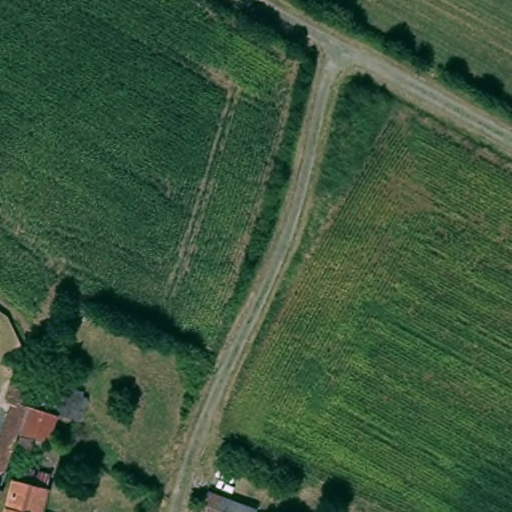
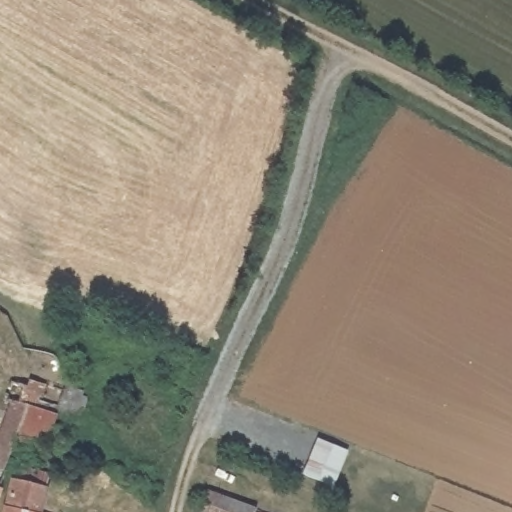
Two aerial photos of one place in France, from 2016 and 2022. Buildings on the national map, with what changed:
unchanged [(14,445),(12,451),(12,452),(11,453),(11,454),(8,460),(7,463),(6,465),(6,466),(5,467),(4,468),(1,473),(0,474),(0,434),(2,430),(4,426),(8,415),(7,415),(5,413),(0,412),(0,406),(2,403),(7,391),(11,392),(15,393),(20,395),(21,396),(22,395),(24,390),(32,393),(33,393),(37,394),(40,395),(38,401),(37,403),(37,405),(34,413),(33,415),(32,417),(34,418),(36,419),(37,419),(41,420),(42,420),(42,421),(43,421),(45,421),(45,422),(47,422),(50,423),(51,423),(41,451),(39,450),(37,450),(37,449),(34,448),(30,445),(28,445),(24,443),(18,440),(17,440),(16,442),(14,445)]
unchanged [(81,408),(80,410),(78,417),(77,422),(76,423),(75,426),(75,427),(52,420),(52,418),(52,417),(53,416),(54,413),(55,410),(56,407),(57,405),(57,404),(57,403),(58,400),(59,399),(81,407),(81,408)]
unchanged [(6,507),(7,505),(7,503),(11,485),(46,491),(41,512),(5,512),(6,507)]
unchanged [(256,507),(254,512),(198,512),(207,488),(256,507)]

